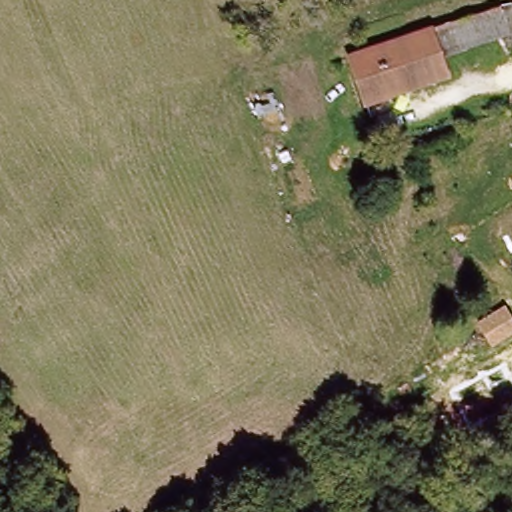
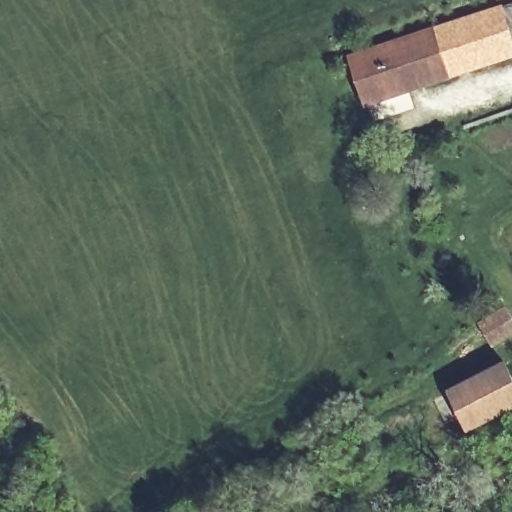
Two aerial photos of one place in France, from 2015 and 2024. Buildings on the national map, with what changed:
unchanged [(511,32),(446,55),(438,29),(512,5),(512,34),(511,32)]
unchanged [(451,70),(403,87),(390,46),(438,29),(446,55),(451,70)]
unchanged [(403,87),(363,100),(350,58),(390,46),(403,87)]
new [(501,369),(512,390),(512,418),(465,442),(442,399),(501,369)]

